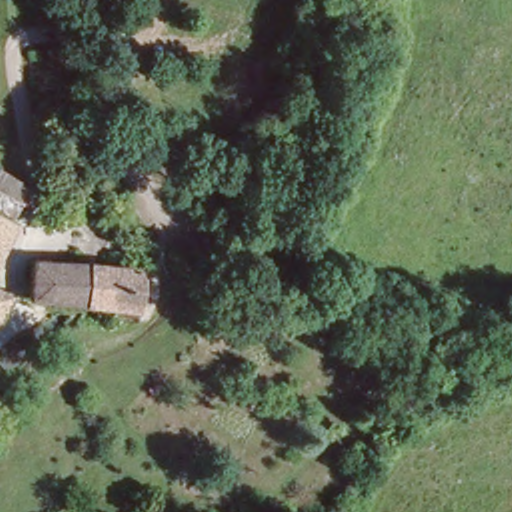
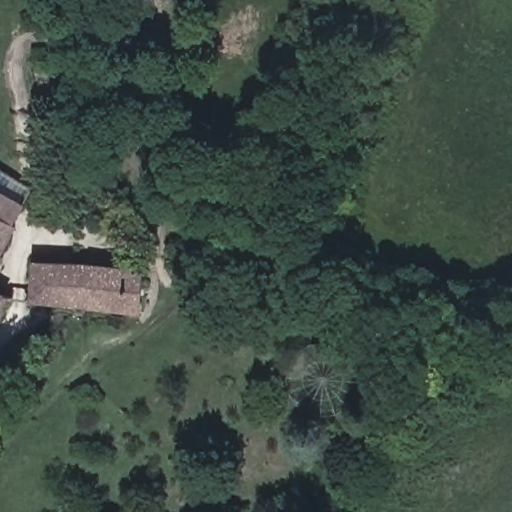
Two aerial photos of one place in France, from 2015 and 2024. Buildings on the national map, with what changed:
unchanged [(22,195),(8,222),(11,225),(0,248),(0,183),(22,195)]
unchanged [(139,266),(137,308),(75,305),(79,273),(80,264),(80,263),(139,266)]
unchanged [(75,305),(75,310),(30,303),(34,266),(79,273),(75,305)]

